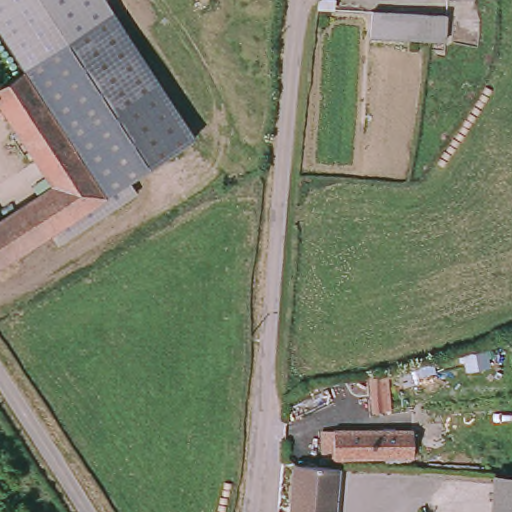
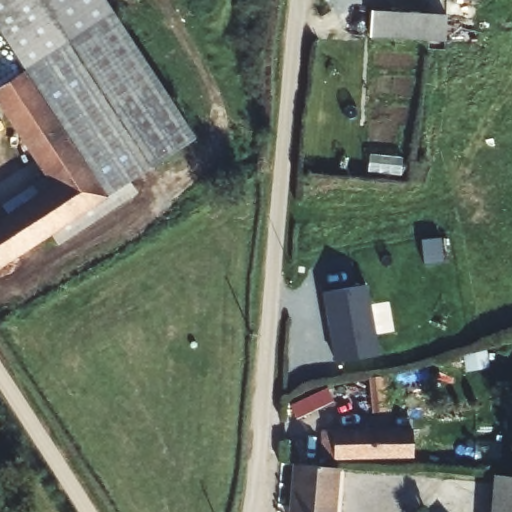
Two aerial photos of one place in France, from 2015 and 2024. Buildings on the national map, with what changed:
unchanged [(106,0),(200,144),(189,153),(156,101),(108,30),(30,79),(0,34),(0,0),(106,0)]
unchanged [(439,43),(427,43),(377,43),(377,13),(429,14),(438,14),(439,43)]
unchanged [(108,30),(156,101),(189,153),(99,207),(98,206),(35,112),(20,90),(17,87),(108,30)]
unchanged [(48,194),(0,122),(0,96),(4,94),(17,87),(20,90),(35,112),(98,206),(99,207),(0,270),(0,222),(48,194)]
new [(380,355),(335,363),(322,293),(368,285),(380,355)]
unchanged [(385,419),(373,419),(366,379),(379,376),(385,419)]
unchanged [(375,433),(404,436),(400,468),(333,463),(333,454),(326,454),(325,427),(374,433),(375,433)]
unchanged [(303,474),(336,481),(334,504),(333,512),(301,512),(302,496),(303,474)]
unchanged [(512,493),(512,512),(487,512),(489,490),(512,493)]

